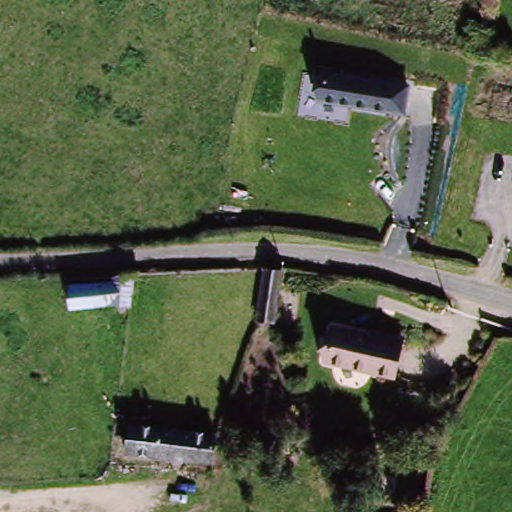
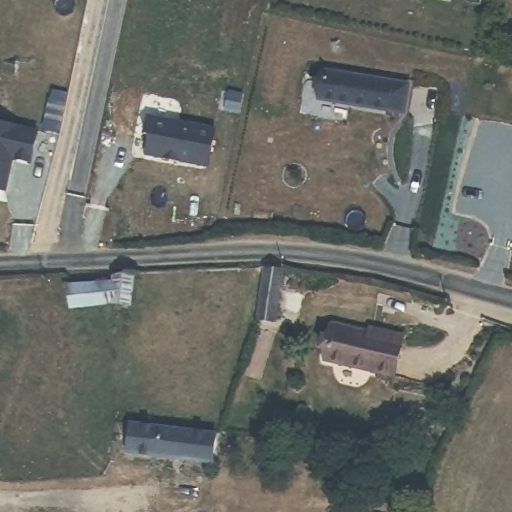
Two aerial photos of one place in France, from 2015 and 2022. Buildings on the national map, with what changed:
unchanged [(407,112),(322,101),(326,73),(410,84),(407,112)]
new [(154,133),(151,131),(155,113),(218,126),(210,166),(151,153),(154,133)]
new [(38,130),(31,161),(12,158),(6,190),(0,189),(0,122),(38,130)]
unchanged [(259,323),(267,272),(283,273),(277,325),(259,323)]
unchanged [(70,315),(65,292),(114,282),(115,274),(134,276),(130,309),(111,306),(70,315)]
unchanged [(340,333),(381,343),(383,340),(405,345),(395,383),(331,366),(340,333)]
unchanged [(130,427),(215,439),(217,439),(212,468),(125,454),(130,427)]

